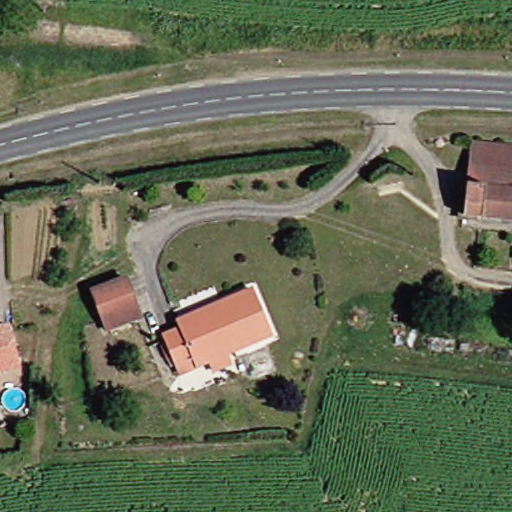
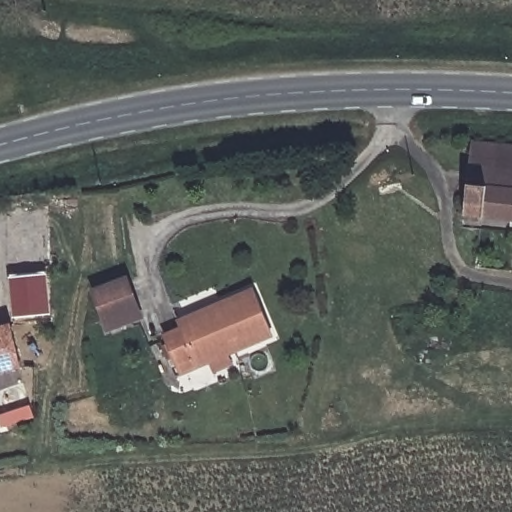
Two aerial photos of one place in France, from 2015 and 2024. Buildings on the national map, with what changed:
unchanged [(467,147),(512,149),(512,226),(464,224),(467,147)]
new [(50,315),(13,318),(10,277),(47,273),(50,315)]
unchanged [(102,330),(89,290),(126,279),(137,319),(102,330)]
unchanged [(264,345),(168,377),(157,335),(174,330),(172,320),(221,306),(250,297),(264,345)]
unchanged [(4,329),(13,374),(0,377),(0,329),(4,329)]

